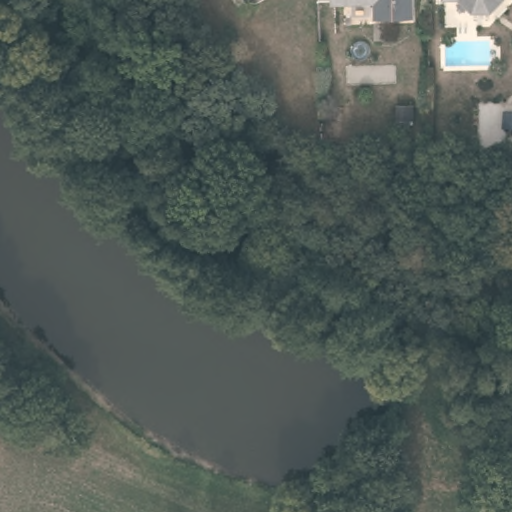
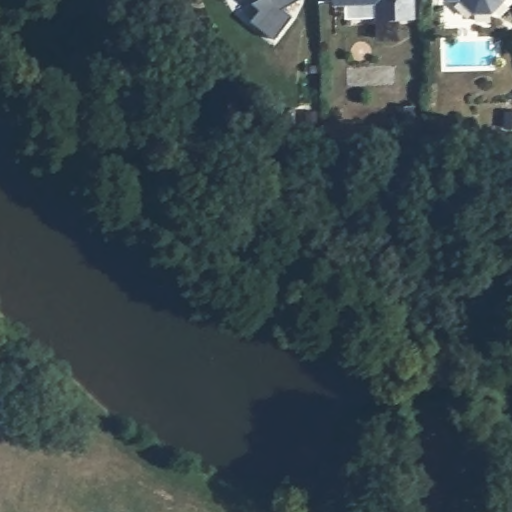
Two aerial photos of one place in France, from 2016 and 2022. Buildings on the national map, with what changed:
demolished [(255,6),(250,4),(245,6),(242,0),(265,0),(255,6)]
new [(280,8),(290,15),(272,38),(248,20),(256,7),(248,2),(247,0),(294,0),(280,8)]
unchanged [(409,22),(371,22),(371,6),(330,7),(330,0),(409,0),(409,22)]
unchanged [(488,15),(472,16),(459,2),(440,2),(440,0),(502,0),(488,15)]

